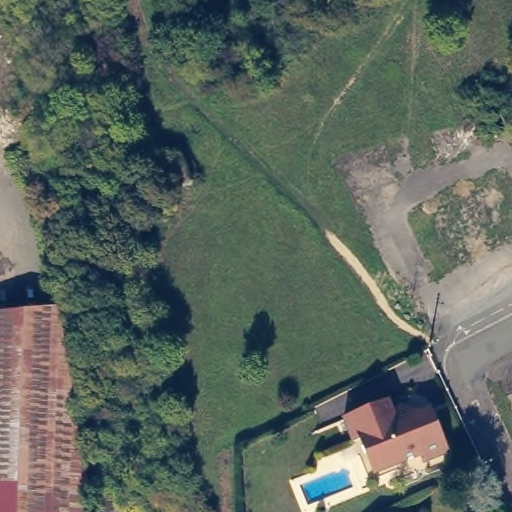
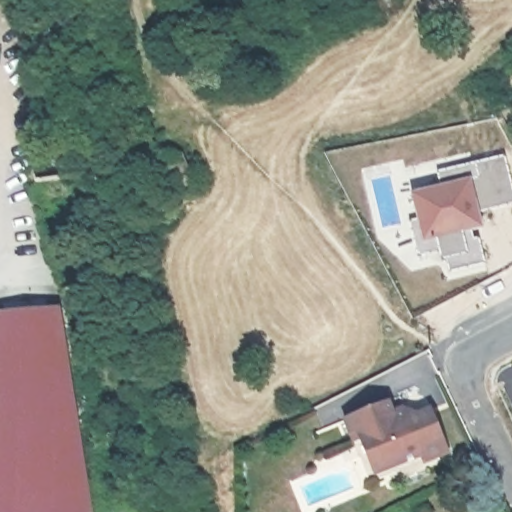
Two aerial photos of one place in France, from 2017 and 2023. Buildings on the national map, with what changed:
unchanged [(197,182),(170,187),(157,152),(184,149),(197,182)]
new [(512,204),(479,212),(483,227),(471,231),(473,238),(478,236),(485,264),(449,273),(445,259),(441,260),(438,252),(417,257),(408,221),(416,219),(410,193),(438,185),(435,171),(505,154),(512,186),(512,204)]
unchanged [(0,512),(0,306),(54,301),(88,512),(0,512)]
unchanged [(402,457),(383,465),(372,438),(359,443),(349,418),(392,401),(397,411),(407,407),(422,414),(436,409),(453,451),(428,462),(425,455),(405,463),(402,457)]

